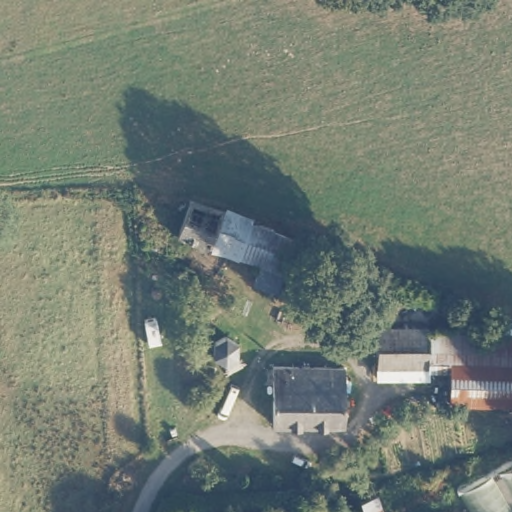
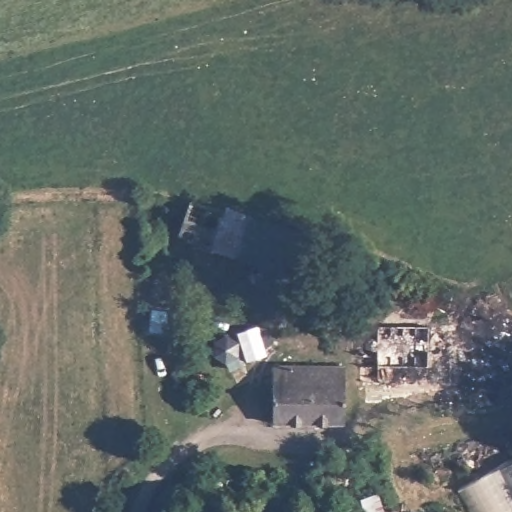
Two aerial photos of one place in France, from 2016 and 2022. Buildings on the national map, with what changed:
unchanged [(268,265),(239,255),(235,254),(202,242),(213,211),(213,210),(221,212),(247,220),(279,230),(268,265)]
unchanged [(435,326),(435,364),(427,364),(381,366),(378,326),(427,325),(435,326)]
unchanged [(512,329),(512,398),(453,396),(453,370),(453,365),(435,364),(435,326),(512,329)]
unchanged [(210,342),(222,336),(232,343),(233,356),(222,363),(210,355),(210,342)]
unchanged [(307,426),(270,427),(270,366),(308,366),(307,426)]
unchanged [(343,366),(343,395),(345,425),(307,426),(308,366),(343,366)]
unchanged [(383,490),(392,487),(397,512),(368,512),(365,492),(383,490)]

